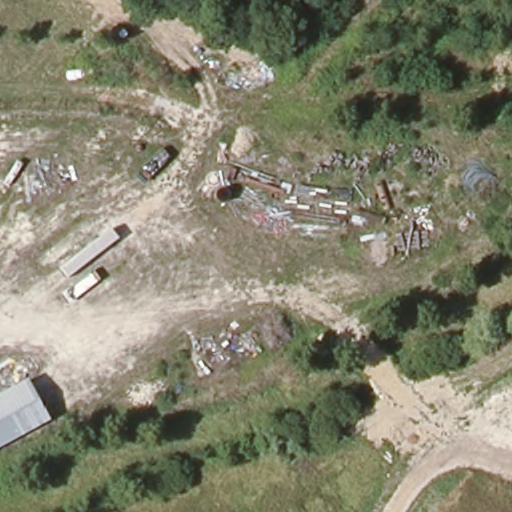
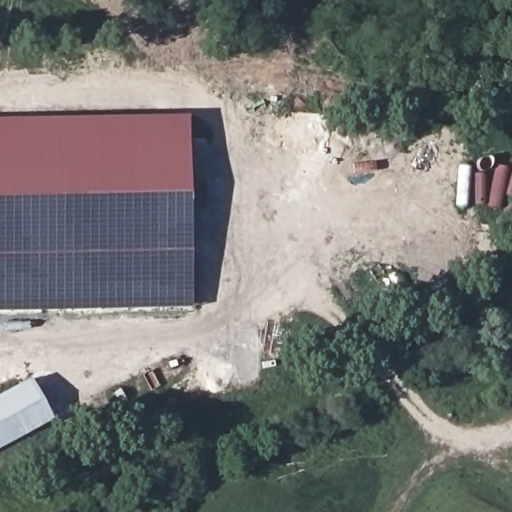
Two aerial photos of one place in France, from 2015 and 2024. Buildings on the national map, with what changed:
new [(186,311),(0,312),(0,116),(186,116),(186,311)]
unchanged [(51,420),(0,448),(0,396),(28,381),(51,420)]

